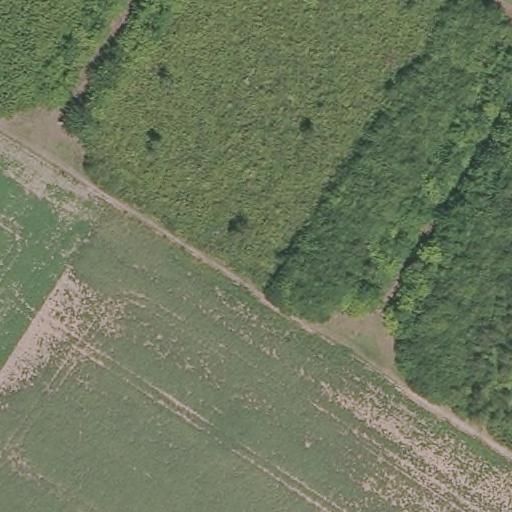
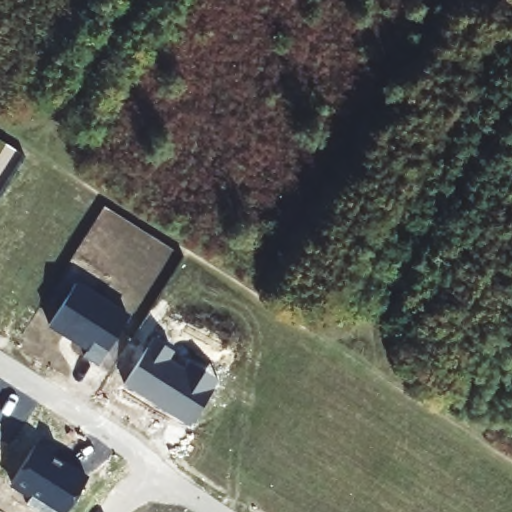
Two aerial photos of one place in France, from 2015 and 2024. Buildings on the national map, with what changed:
new [(77,282),(130,315),(97,366),(82,357),(85,351),(47,327),(77,282)]
new [(124,384),(153,338),(174,351),(170,359),(184,368),(189,361),(217,380),(189,425),(124,384)]
new [(37,444),(87,476),(65,512),(56,512),(31,495),(28,499),(9,486),(37,444)]

